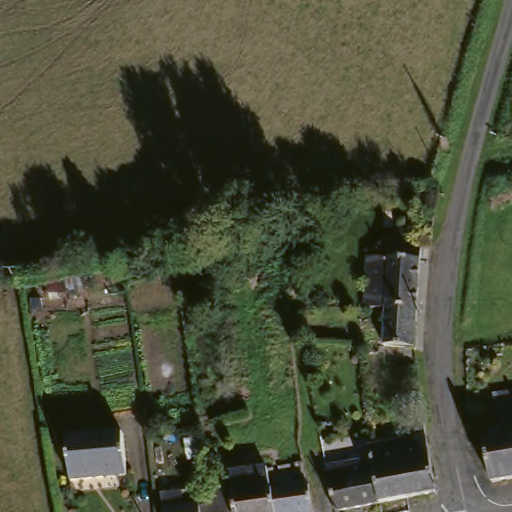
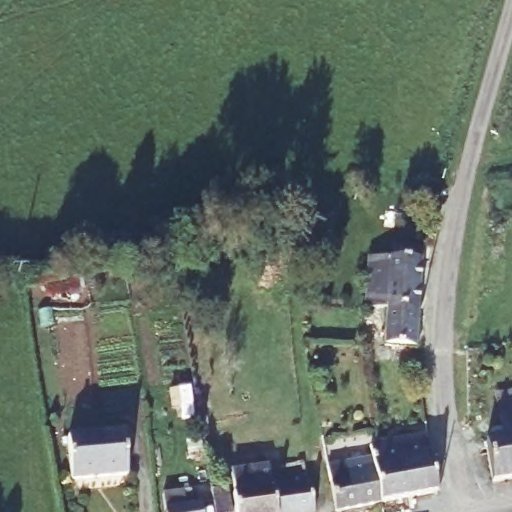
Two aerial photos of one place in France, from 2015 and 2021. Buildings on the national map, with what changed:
unchanged [(282,275),(257,275),(257,217),(280,214),(282,275)]
unchanged [(360,313),(365,264),(385,265),(395,266),(396,250),(417,252),(410,316),(381,315),(360,313)]
unchanged [(410,316),(407,352),(378,351),(381,315),(410,316)]
unchanged [(512,442),(494,446),(486,399),(512,394),(512,442)]
unchanged [(69,483),(62,441),(118,432),(125,474),(69,483)]
unchanged [(329,512),(324,483),(323,477),(322,468),(367,460),(366,450),(395,445),(424,441),(427,465),(432,497),(404,502),(377,507),(346,512),(329,512)]
unchanged [(512,442),(512,484),(483,489),(477,449),(494,446),(512,442)]
unchanged [(232,500),(230,480),(250,477),(262,475),(265,495),(303,490),(306,512),(231,512),(229,501),(232,500)]
unchanged [(203,497),(220,494),(223,512),(155,512),(153,499),(202,490),(203,497)]

